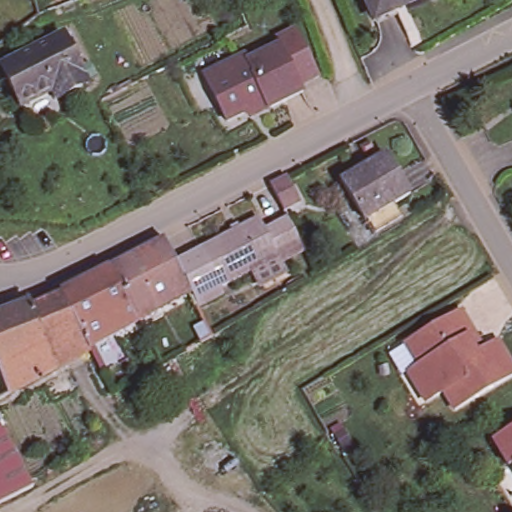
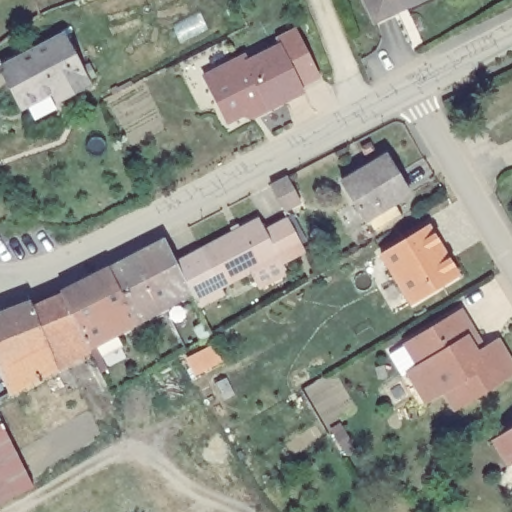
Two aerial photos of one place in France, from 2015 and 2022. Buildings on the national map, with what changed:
unchanged [(369,0),(429,0),(381,24),(369,0)]
unchanged [(299,25),(323,73),(304,83),(283,42),(279,35),(299,25)]
unchanged [(33,117),(23,98),(1,59),(63,26),(88,74),(58,90),(63,101),(33,117)]
unchanged [(283,42),(304,83),(308,90),(284,102),(264,52),(283,42)]
unchanged [(252,109),(231,120),(208,72),(250,51),(253,57),(264,52),(284,102),(273,109),(256,117),(252,109)]
unchanged [(371,227),(363,214),(361,215),(339,180),(357,169),(354,165),(381,149),(406,189),(390,198),(398,211),(371,227)]
unchanged [(281,176),(294,202),(281,210),(266,184),(281,176)]
unchanged [(257,286),(249,270),(217,288),(196,250),(254,219),(261,230),(283,219),(300,251),(276,265),(280,272),(257,286)]
new [(379,254),(431,223),(461,276),(411,306),(379,254)]
unchanged [(161,239),(173,264),(186,292),(132,323),(104,268),(161,239)]
unchanged [(196,250),(217,288),(220,294),(194,308),(186,292),(173,264),(196,250)]
unchanged [(104,268),(132,323),(84,350),(57,293),(56,292),(104,268)]
unchanged [(10,391),(0,368),(0,312),(26,301),(28,306),(57,293),(84,350),(63,361),(53,367),(10,391)]
unchanged [(482,335),(475,339),(482,351),(503,338),(512,354),(512,376),(459,406),(449,388),(432,398),(414,367),(431,357),(418,335),(466,307),(482,335)]
unchanged [(1,421),(0,422),(0,418),(1,421)]
unchanged [(1,421),(15,452),(33,493),(0,508),(0,422),(1,421)]
unchanged [(512,465),(509,467),(494,440),(512,429),(512,465)]

